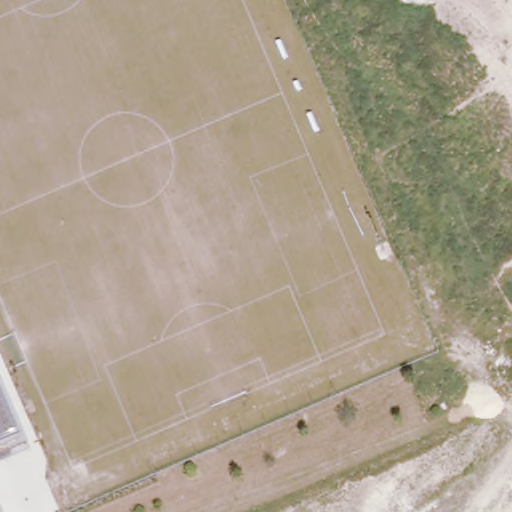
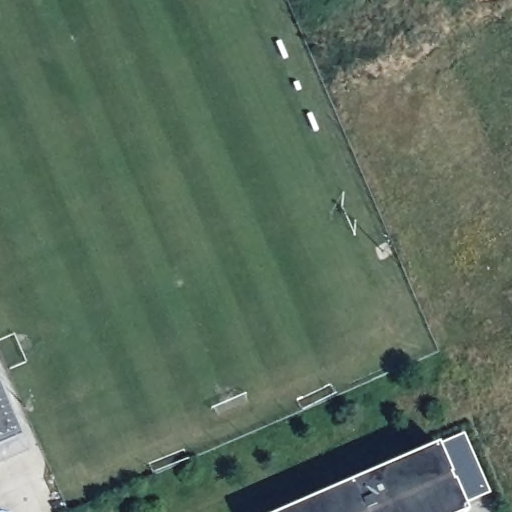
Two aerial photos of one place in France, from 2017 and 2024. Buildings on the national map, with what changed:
unchanged [(0,379),(31,450),(0,464),(0,379)]
new [(464,512),(285,512),(436,446),(464,512)]

